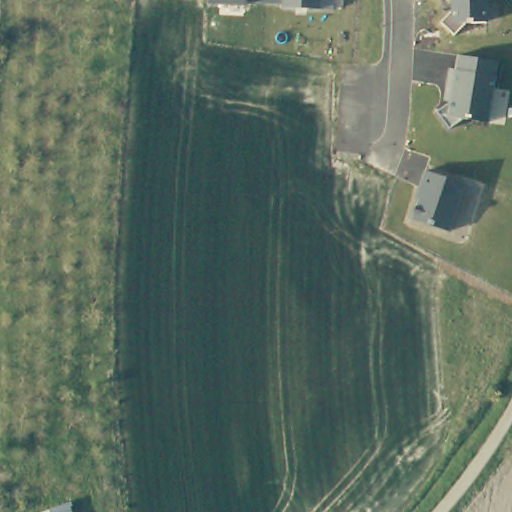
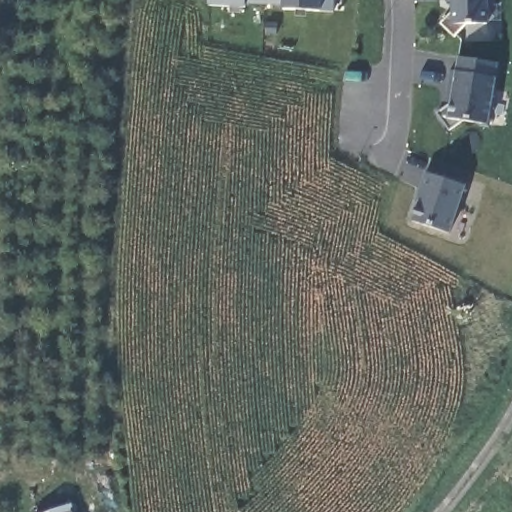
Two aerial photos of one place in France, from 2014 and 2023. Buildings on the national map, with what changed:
unchanged [(321,9),(286,7),(244,4),(211,3),(211,0),(321,0),(321,9)]
unchanged [(487,22),(469,22),(454,35),(442,22),(452,10),(452,0),(487,0),(487,22)]
unchanged [(496,61),(487,122),(465,119),(450,129),(438,108),(449,102),(457,55),(496,61)]
unchanged [(464,184),(449,230),(411,220),(425,173),(464,184)]
unchanged [(38,512),(69,502),(72,512),(38,512)]

